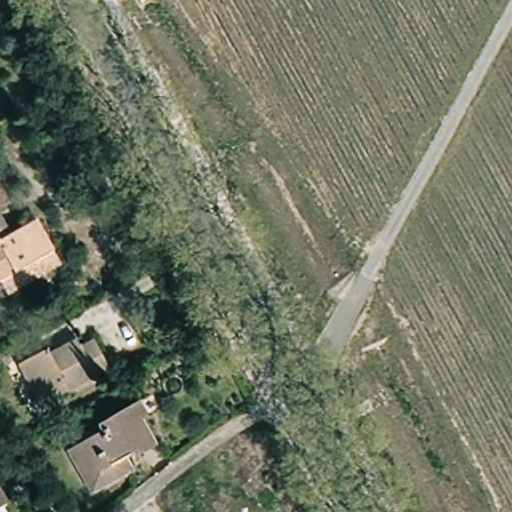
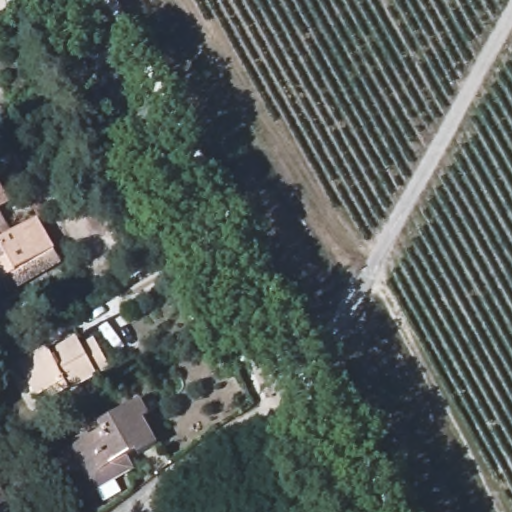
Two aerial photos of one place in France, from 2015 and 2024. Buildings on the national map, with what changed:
unchanged [(0,205),(0,197),(4,203),(0,205)]
unchanged [(0,229),(4,236),(31,222),(46,248),(0,274),(0,229)]
unchanged [(0,274),(46,248),(56,266),(4,295),(0,289),(0,274)]
unchanged [(103,372),(59,400),(54,392),(39,402),(18,369),(48,350),(53,358),(83,339),(87,346),(99,338),(114,364),(103,372)]
unchanged [(67,450),(100,429),(96,422),(131,402),(141,418),(134,422),(150,447),(135,457),(132,452),(121,459),(129,473),(118,481),(102,490),(95,495),(80,470),(67,450)]
unchanged [(0,512),(0,486),(12,504),(0,512)]

